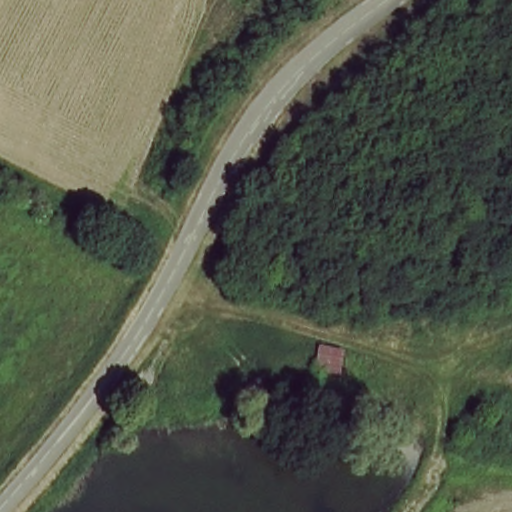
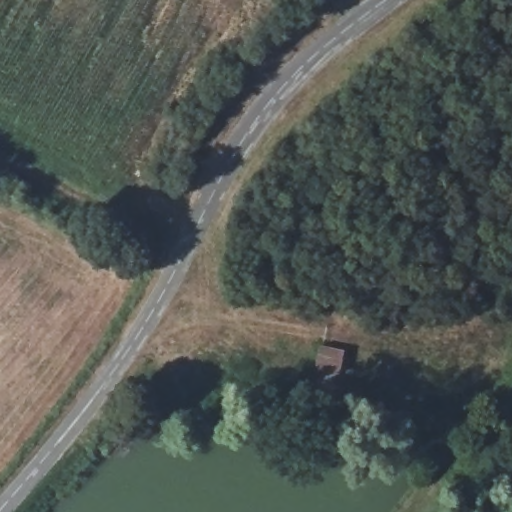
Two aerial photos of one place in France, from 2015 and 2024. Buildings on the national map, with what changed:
unchanged [(317,372),(319,347),(348,350),(344,379),(317,372)]

